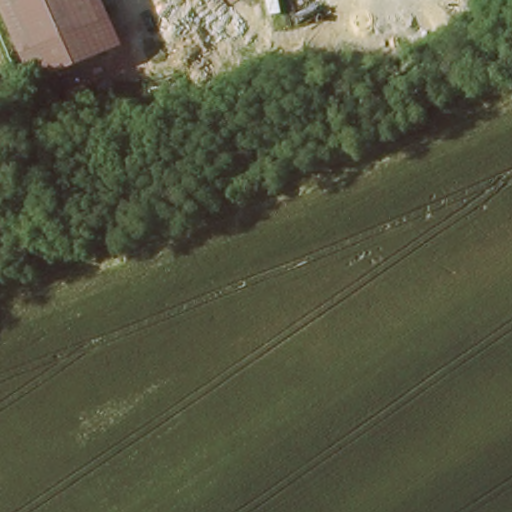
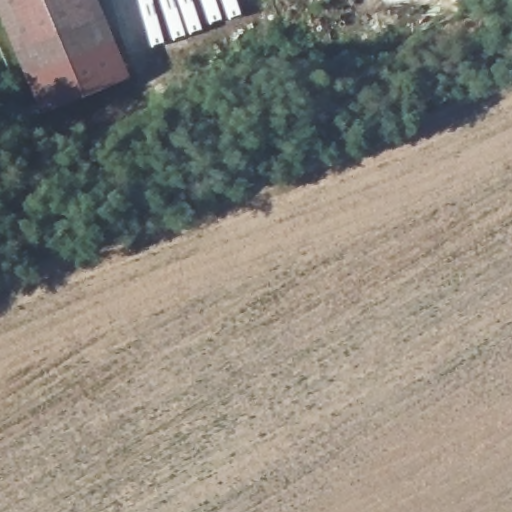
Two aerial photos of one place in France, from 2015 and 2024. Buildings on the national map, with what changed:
unchanged [(15,46),(0,11),(0,0),(93,0),(98,11),(15,46)]
unchanged [(512,0),(512,4),(435,6),(434,0),(512,0)]
unchanged [(114,43),(24,83),(14,60),(102,21),(114,43)]

